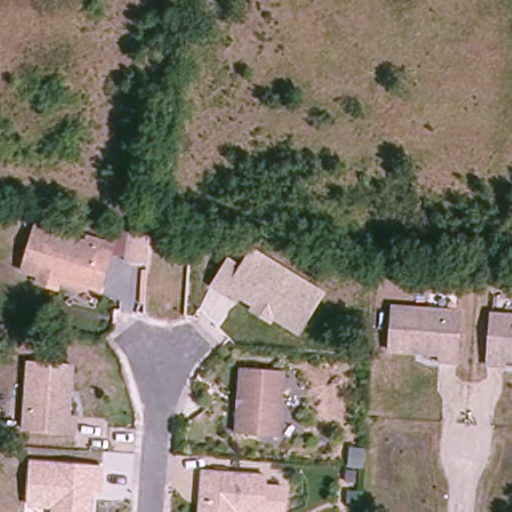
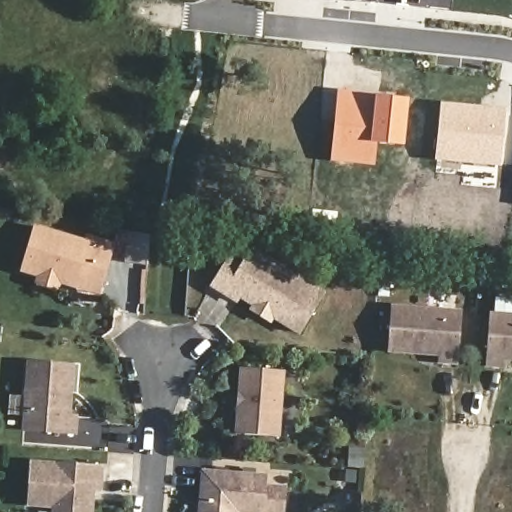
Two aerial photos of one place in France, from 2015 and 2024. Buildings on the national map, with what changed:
new [(375,167),(330,162),(337,91),(410,99),(405,147),(378,145),(375,167)]
new [(436,161),(441,103),(495,108),(495,112),(505,112),(500,167),(436,161)]
unchanged [(72,285),(56,281),(54,288),(33,283),(35,276),(18,270),(28,233),(30,226),(79,239),(80,235),(107,239),(106,243),(101,264),(96,283),(93,292),(72,285)]
new [(131,234),(152,236),(148,266),(128,264),(131,234)]
unchanged [(250,310),(252,306),(237,296),(234,300),(207,284),(222,259),(235,267),(247,249),(320,297),(297,334),(268,316),(266,322),(250,310)]
unchanged [(453,363),(436,363),(437,355),(386,352),(388,307),(457,312),(453,363)]
unchanged [(501,367),(484,366),(488,315),(512,317),(512,360),(501,359),(501,367)]
unchanged [(68,416),(75,418),(73,434),(22,427),(29,364),(73,370),(68,416)]
unchanged [(277,438),(234,434),(240,367),(282,370),(277,438)]
unchanged [(95,491),(94,512),(49,512),(50,510),(29,508),(32,460),(104,465),(103,492),(95,491)]
unchanged [(263,512),(254,512),(238,511),(237,512),(199,512),(200,502),(201,488),(202,471),(267,476),(263,512)]

